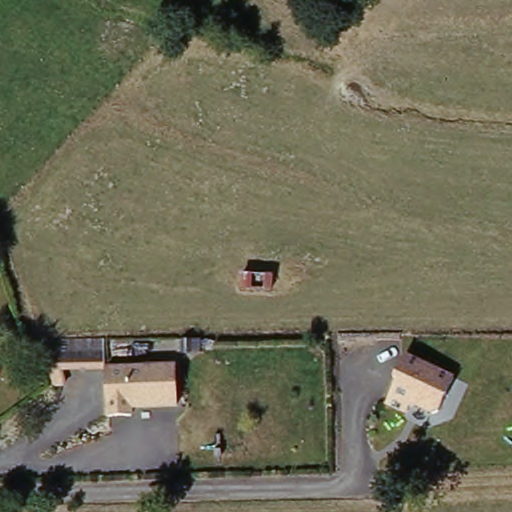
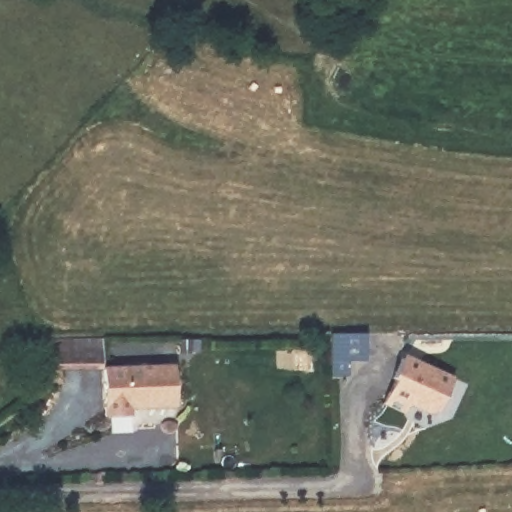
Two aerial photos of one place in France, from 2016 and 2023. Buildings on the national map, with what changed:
unchanged [(236,280),(271,282),(270,298),(235,298),(236,280)]
unchanged [(450,376),(432,418),(387,400),(405,356),(450,376)]
unchanged [(175,378),(172,418),(127,415),(127,422),(103,420),(106,373),(175,378)]

